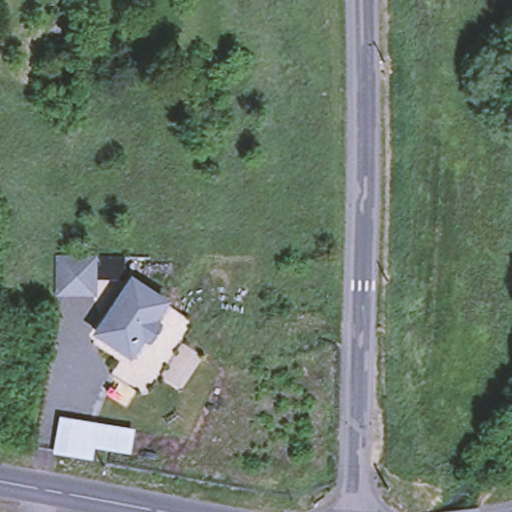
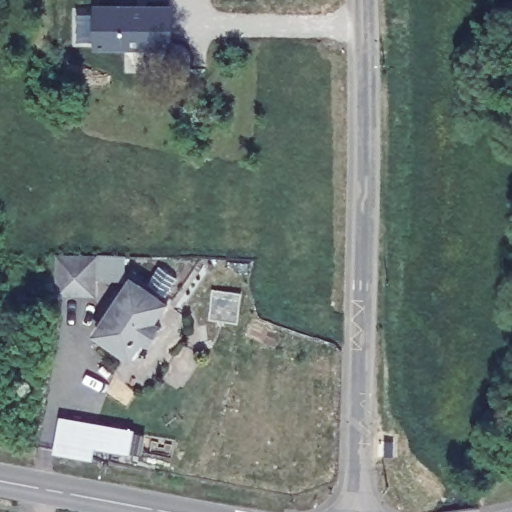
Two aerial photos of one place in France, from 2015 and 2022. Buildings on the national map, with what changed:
new [(173,51),(93,50),(93,41),(71,41),(72,14),(93,15),(94,4),(173,4),(173,51)]
unchanged [(95,258),(94,293),(59,292),(60,258),(95,258)]
unchanged [(159,300),(149,318),(158,324),(147,342),(138,337),(128,355),(93,336),(104,317),(104,310),(108,303),(114,300),(124,281),(159,300)]
unchanged [(58,416),(134,431),(131,456),(93,450),(91,461),(53,453),(58,416)]

